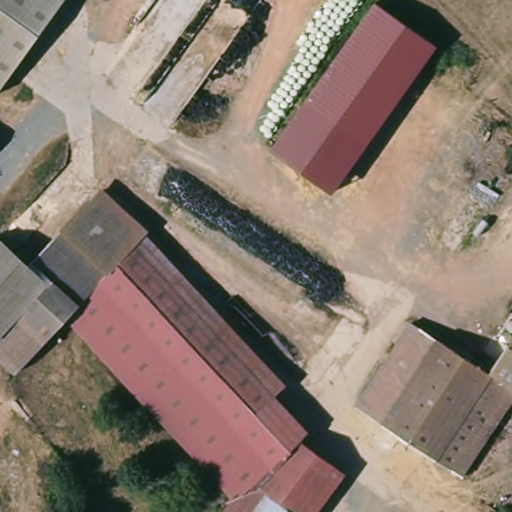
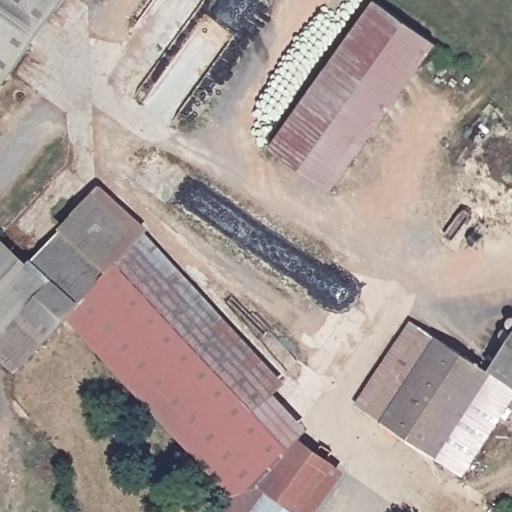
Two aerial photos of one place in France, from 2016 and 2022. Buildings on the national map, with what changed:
unchanged [(64,0),(0,89),(0,0),(64,0)]
unchanged [(274,153),(373,2),(436,43),(337,194),(274,153)]
unchanged [(290,387),(279,397),(305,428),(299,435),(64,222),(98,187),(290,387)]
unchanged [(21,378),(0,359),(0,316),(42,270),(37,265),(17,247),(52,211),(64,222),(299,435),(292,443),(325,467),(297,512),(214,512),(225,497),(56,342),(21,378)]
unchanged [(0,307),(0,232),(17,247),(37,265),(0,307)]
unchanged [(352,403),(408,321),(444,346),(390,429),(352,403)]
unchanged [(512,330),(512,392),(483,373),(512,330)]
unchanged [(512,392),(512,426),(509,430),(494,420),(457,475),(390,429),(444,346),(483,373),(512,392)]

